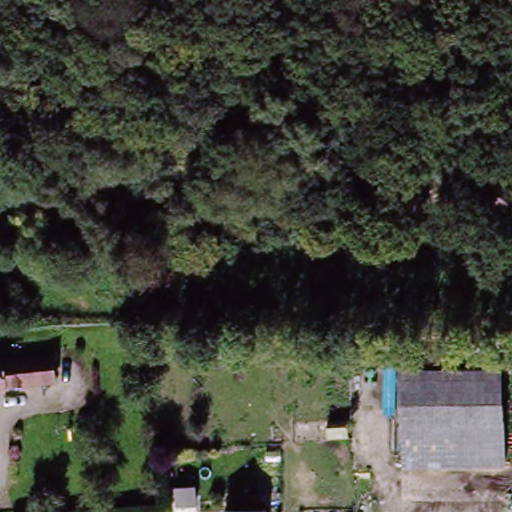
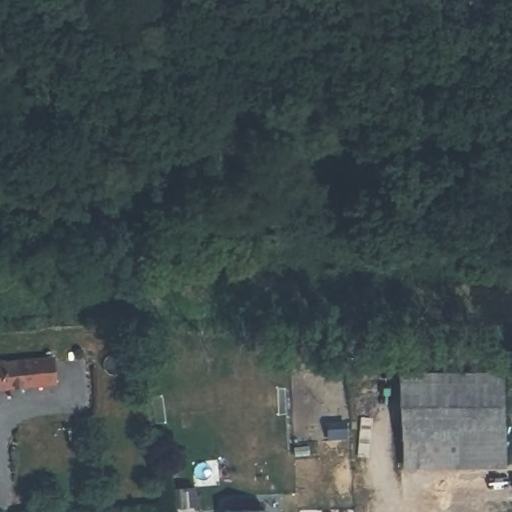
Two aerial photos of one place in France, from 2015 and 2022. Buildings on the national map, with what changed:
unchanged [(0,361),(44,362),(43,388),(0,387),(0,361)]
unchanged [(503,371),(505,464),(405,465),(405,371),(503,371)]
unchanged [(258,508),(258,512),(221,512),(221,509),(258,508)]

